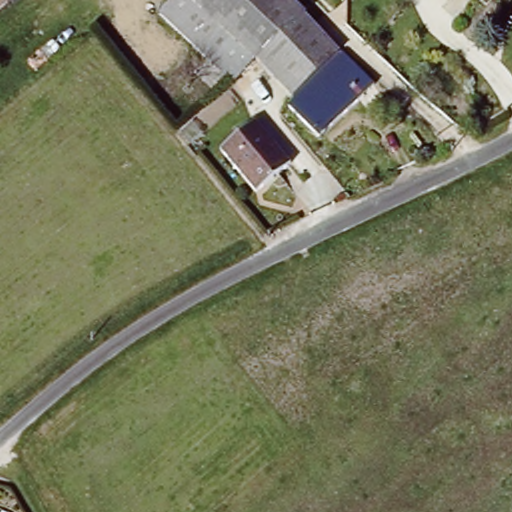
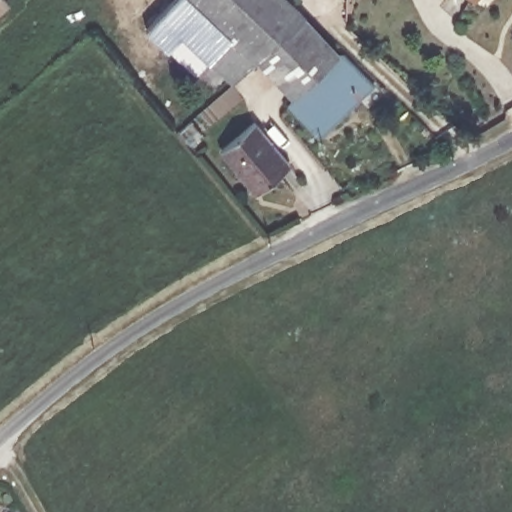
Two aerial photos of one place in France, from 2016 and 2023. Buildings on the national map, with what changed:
unchanged [(2,0),(7,6),(0,13),(0,0),(2,0)]
unchanged [(321,141),(256,69),(235,86),(154,15),(170,0),(289,0),(378,89),(321,141)]
unchanged [(293,158),(261,186),(227,144),(215,127),(236,110),(250,126),(260,118),(293,158)]

